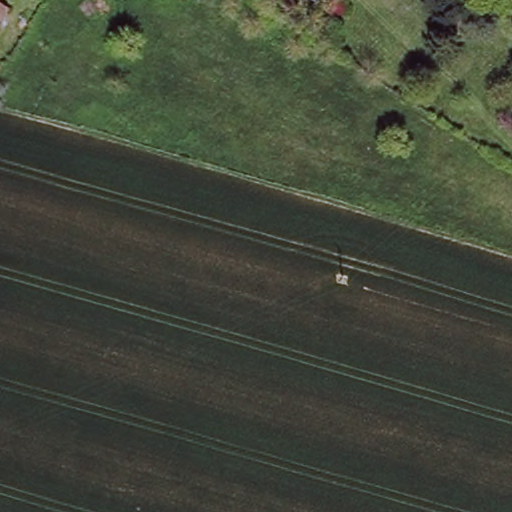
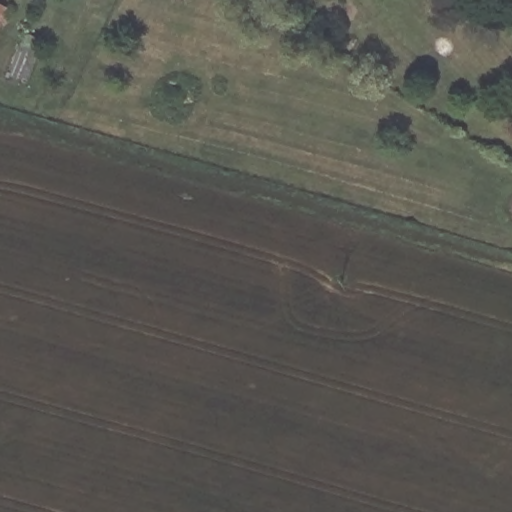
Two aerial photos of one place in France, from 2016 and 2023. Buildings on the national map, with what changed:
unchanged [(10,7),(0,25),(0,0),(10,7)]

